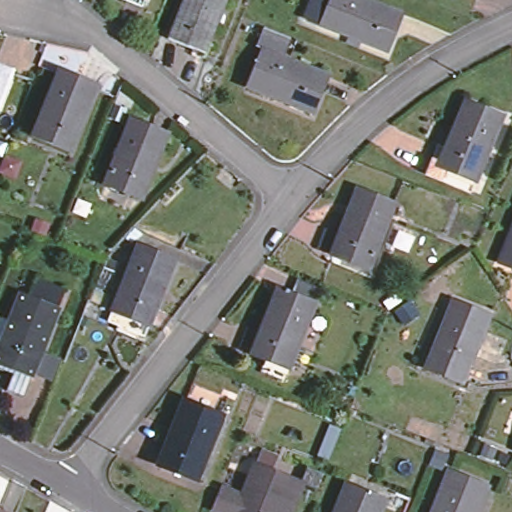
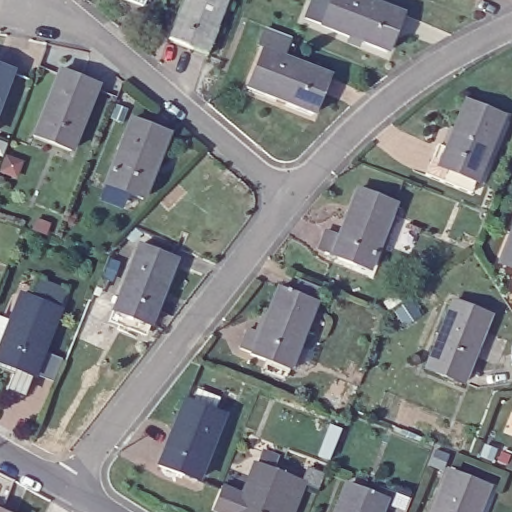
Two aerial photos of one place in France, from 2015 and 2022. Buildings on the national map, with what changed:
unchanged [(134,0),(142,0),(141,3),(134,0)]
unchanged [(168,36),(182,0),(223,0),(203,50),(168,36)]
unchanged [(364,0),(397,13),(382,49),(320,24),(329,0),(364,0)]
unchanged [(263,50),(327,74),(312,113),(248,87),(263,50)]
unchanged [(0,99),(0,67),(12,71),(0,99)]
unchanged [(97,84),(70,148),(34,133),(60,69),(97,84)]
unchanged [(442,135),(450,138),(469,93),(507,109),(480,172),(475,184),(430,165),(435,152),(442,135)]
unchanged [(172,133),(145,198),(108,182),(134,119),(172,133)]
unchanged [(394,205),(370,267),(332,252),(357,189),(394,205)]
unchanged [(115,314),(119,303),(144,239),(181,253),(155,318),(151,329),(115,314)]
unchanged [(504,262),(512,241),(512,265),(504,262)]
unchanged [(282,288),(320,303),(294,369),(256,354),(257,353),(244,348),(250,329),(264,334),(282,288)]
unchanged [(18,362),(0,355),(0,309),(14,314),(22,291),(60,305),(45,346),(64,353),(55,376),(35,369),(27,392),(10,384),(18,362)]
unchanged [(490,315),(464,382),(425,367),(453,300),(490,315)]
unchanged [(224,412),(199,477),(162,463),(187,398),(224,412)]
unchanged [(300,478),(286,512),(242,512),(262,463),(300,478)]
unchanged [(487,481),(474,512),(432,512),(450,466),(487,481)]
unchanged [(352,479),(390,494),(382,512),(338,512),(352,479)]

